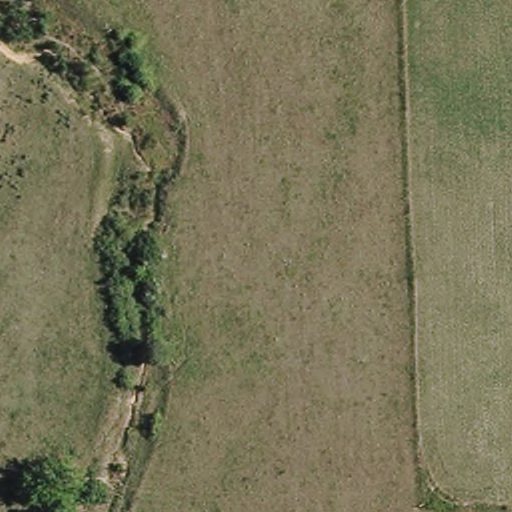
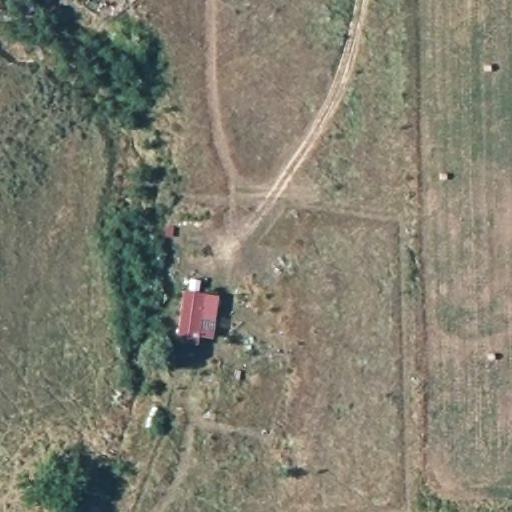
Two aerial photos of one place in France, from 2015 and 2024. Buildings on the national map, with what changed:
new [(211,339),(198,337),(197,344),(177,341),(183,290),(217,295),(211,339)]

